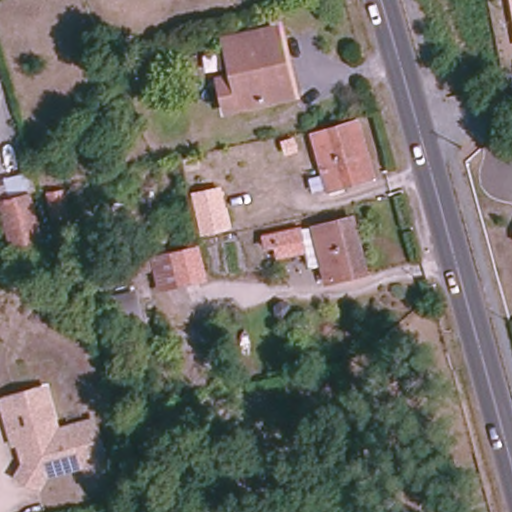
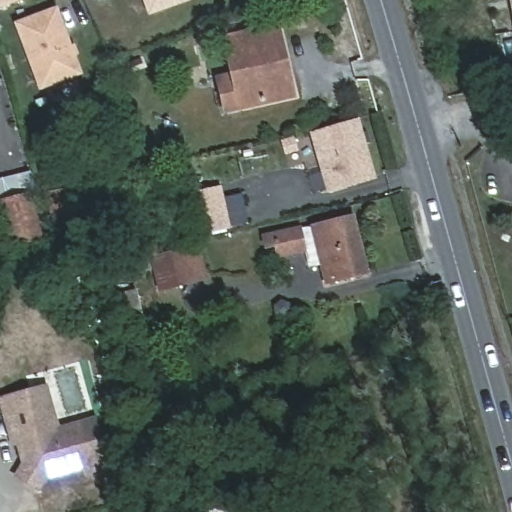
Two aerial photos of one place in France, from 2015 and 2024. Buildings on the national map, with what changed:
new [(143,0),(192,0),(149,15),(143,0)]
unchanged [(511,0),(512,0),(512,7),(511,0)]
new [(39,90),(13,22),(56,6),(81,74),(39,90)]
unchanged [(225,111),(217,78),(230,75),(222,38),(277,25),(281,43),(285,63),(294,96),(225,111)]
unchanged [(327,191),(311,134),(349,124),(358,121),(368,156),(374,177),(327,191)]
new [(29,172),(35,190),(6,196),(1,178),(29,172)]
unchanged [(69,185),(74,211),(56,214),(51,188),(69,185)]
unchanged [(220,187),(230,232),(197,240),(189,194),(220,187)]
unchanged [(11,246),(0,204),(0,202),(29,194),(41,239),(11,246)]
unchanged [(352,217),(367,272),(325,283),(311,228),(352,217)]
unchanged [(299,229),(304,250),(278,257),(274,246),(265,248),(263,237),(299,229)]
unchanged [(197,248),(205,278),(179,285),(170,253),(197,248)]
unchanged [(135,291),(144,328),(119,334),(109,296),(135,291)]
unchanged [(1,398),(44,387),(53,421),(39,424),(34,407),(5,415),(1,398)]
unchanged [(15,476),(23,463),(17,441),(13,442),(10,433),(5,415),(34,407),(39,424),(53,421),(56,430),(94,420),(105,467),(86,472),(84,464),(43,474),(35,487),(15,476)]

